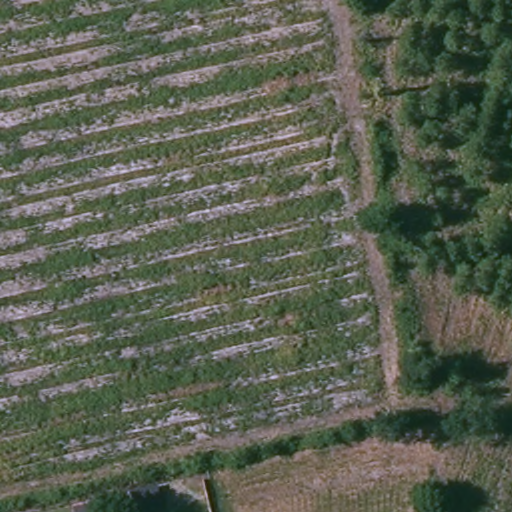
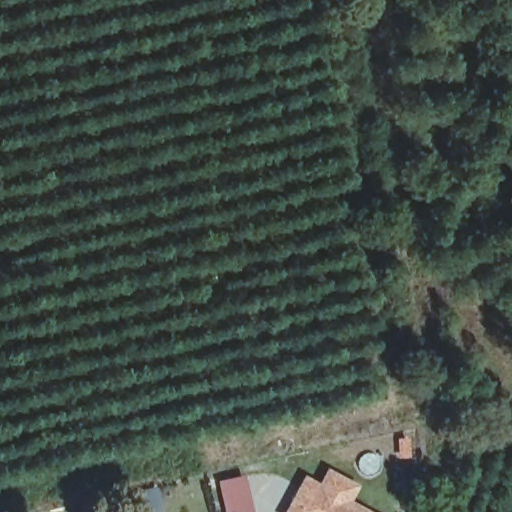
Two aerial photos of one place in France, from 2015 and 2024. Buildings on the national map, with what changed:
new [(304,476),(318,484),(326,470),(360,488),(351,504),(366,512),(284,512),(304,476)]
new [(217,482),(245,476),(253,512),(224,512),(217,482)]

